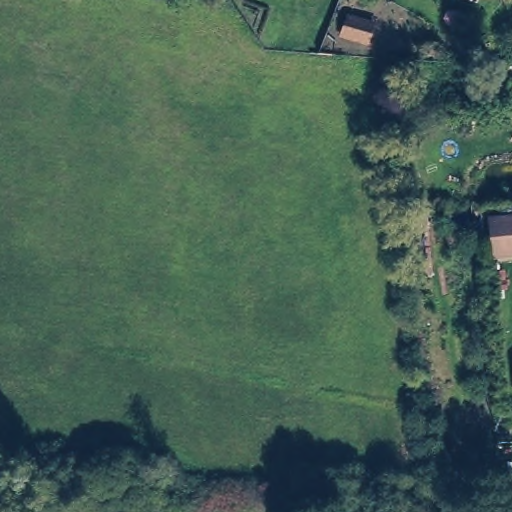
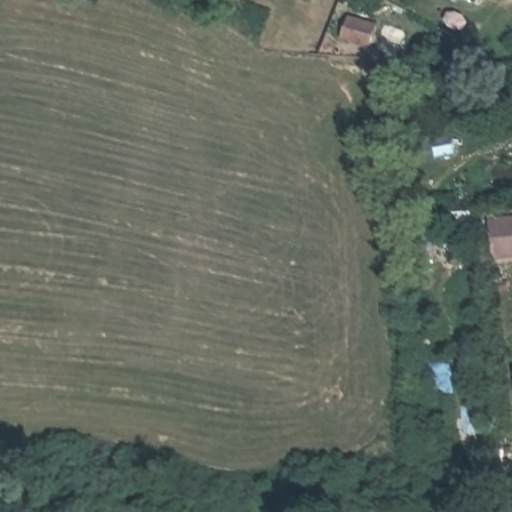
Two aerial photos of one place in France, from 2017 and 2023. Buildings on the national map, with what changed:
unchanged [(508,1),(504,0),(509,0),(508,1)]
unchanged [(374,25),(366,44),(340,35),(348,17),(374,25)]
unchanged [(486,209),(512,208),(512,251),(495,251),(486,209)]

